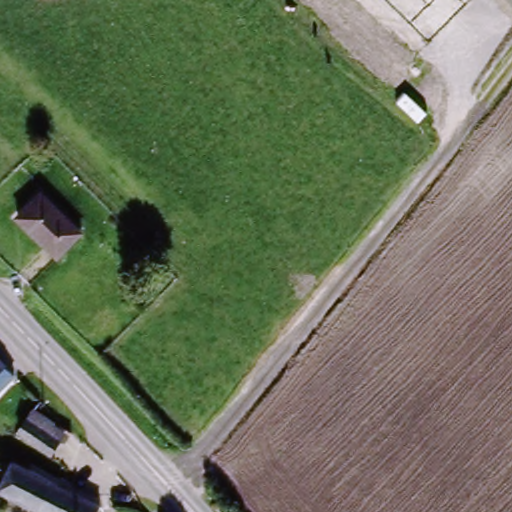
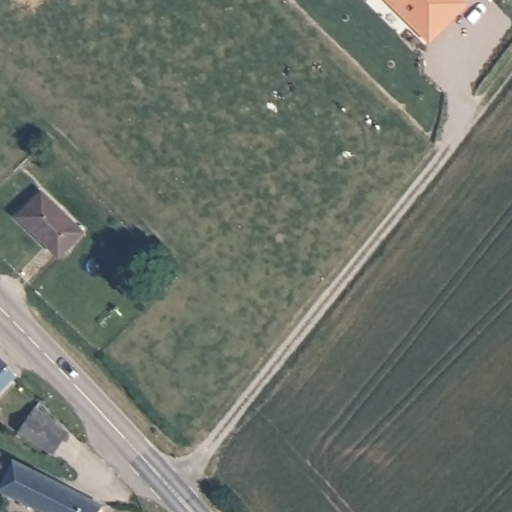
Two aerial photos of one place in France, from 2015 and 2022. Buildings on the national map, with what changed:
new [(430,44),(386,0),(468,0),(470,3),(430,44)]
unchanged [(83,234),(60,257),(17,215),(40,192),(83,234)]
unchanged [(0,388),(0,359),(15,374),(0,388)]
unchanged [(35,408),(56,422),(49,432),(60,439),(52,451),(20,430),(35,408)]
unchanged [(0,489),(7,476),(0,472),(0,465),(2,461),(12,465),(15,461),(103,504),(98,512),(48,512),(0,489)]

